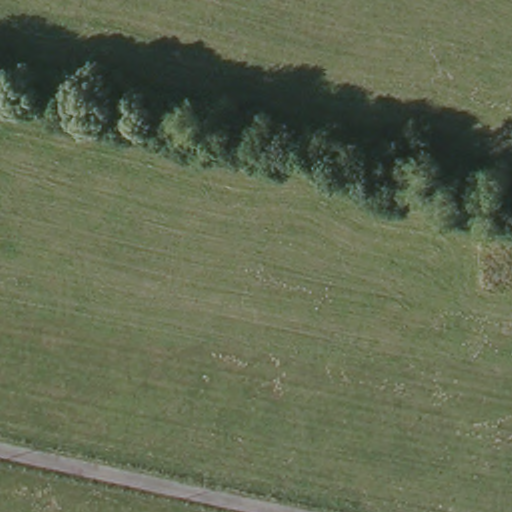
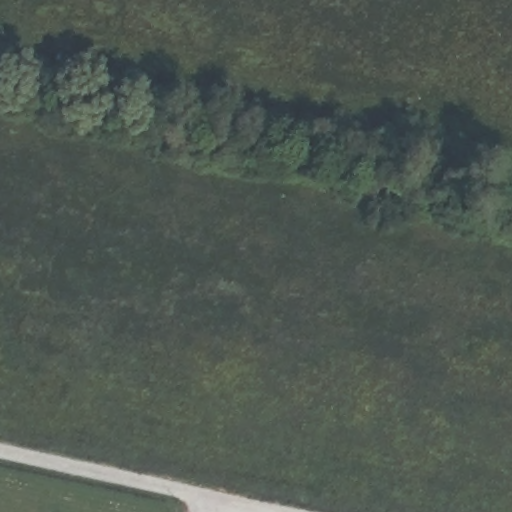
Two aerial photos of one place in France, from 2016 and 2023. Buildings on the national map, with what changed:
[]

